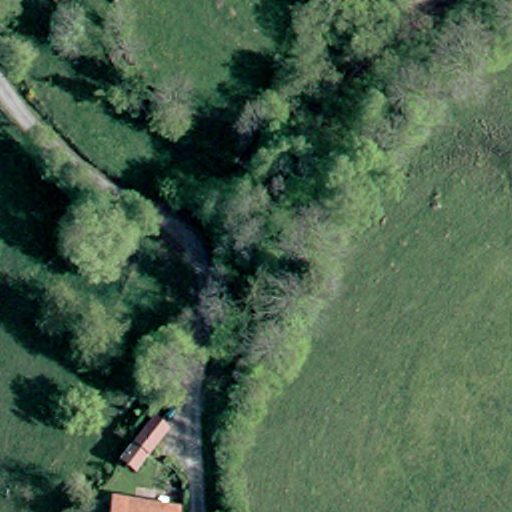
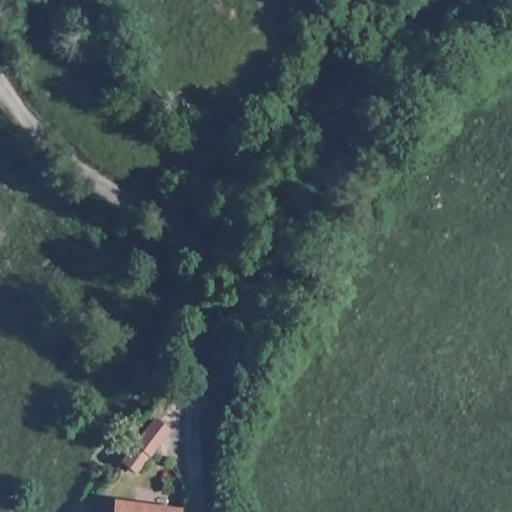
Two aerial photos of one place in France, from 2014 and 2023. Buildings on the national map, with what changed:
unchanged [(178,506),(178,512),(113,512),(115,497),(178,506)]

